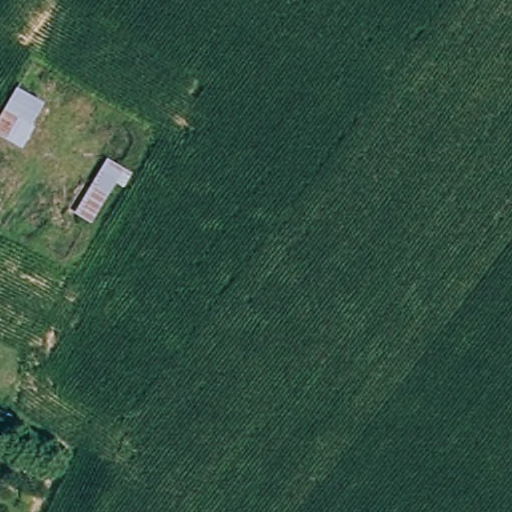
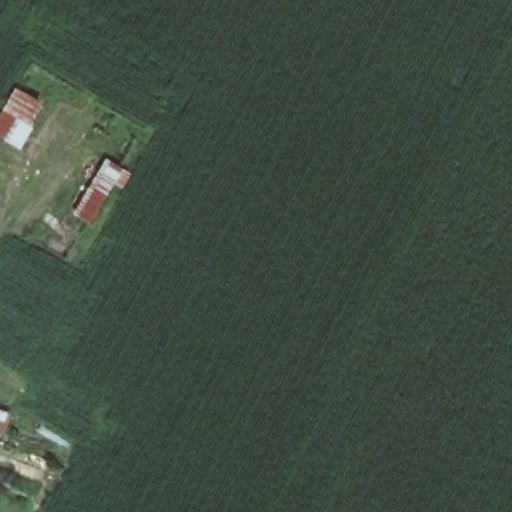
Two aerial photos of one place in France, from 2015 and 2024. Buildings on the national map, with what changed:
unchanged [(16,85),(43,103),(32,125),(34,127),(20,149),(0,137),(0,113),(16,85)]
unchanged [(133,174),(122,188),(117,186),(90,226),(74,214),(105,157),(133,174)]

